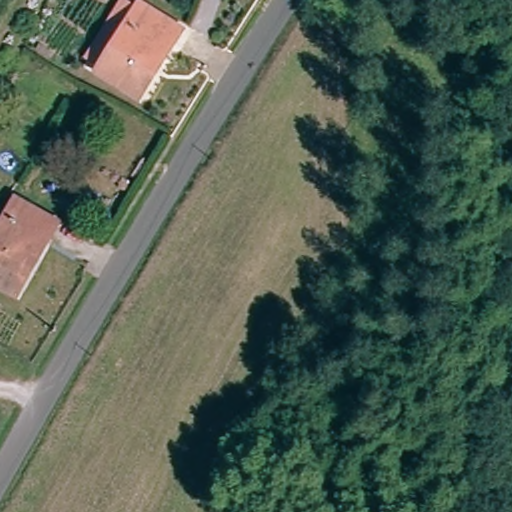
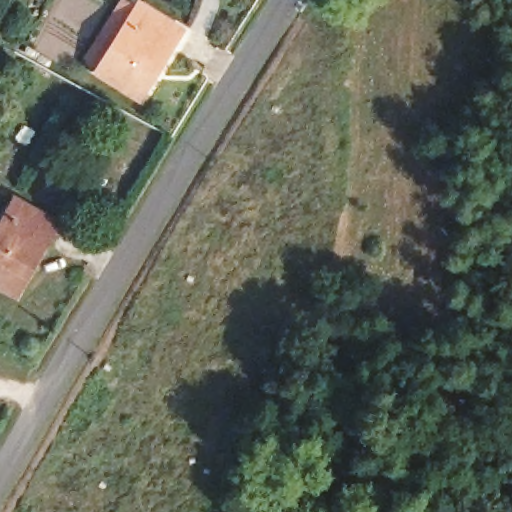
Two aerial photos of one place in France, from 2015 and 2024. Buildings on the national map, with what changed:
unchanged [(129,0),(139,7),(100,75),(85,65),(126,0),(129,0)]
unchanged [(180,34),(139,99),(100,75),(139,7),(180,34)]
unchanged [(10,297),(0,290),(0,228),(15,204),(55,231),(42,250),(22,280),(10,297)]

